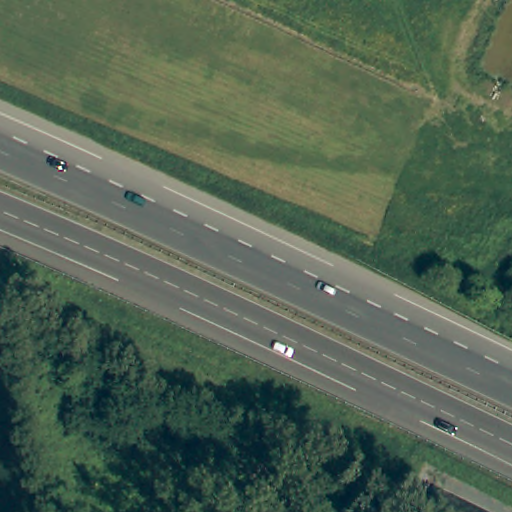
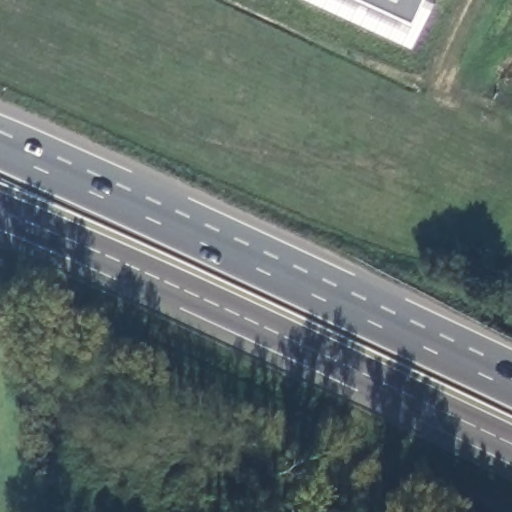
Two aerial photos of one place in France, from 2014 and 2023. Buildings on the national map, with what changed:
new [(409,51),(302,0),(420,0),(431,4),(409,51)]

